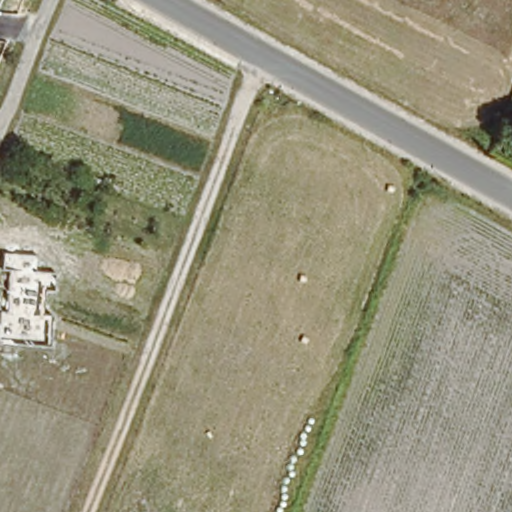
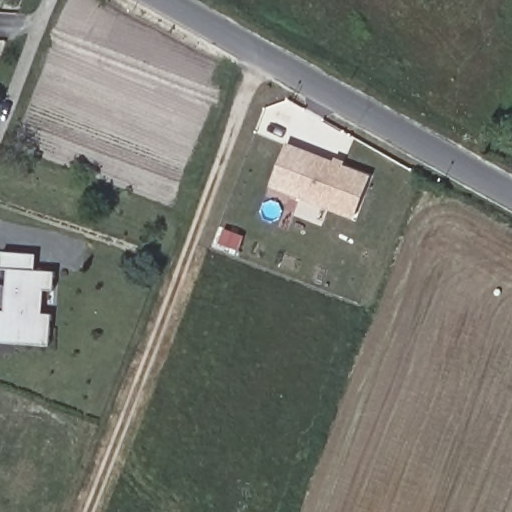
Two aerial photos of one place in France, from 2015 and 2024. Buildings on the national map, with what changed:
new [(270,185),(287,141),(372,175),(355,218),(270,185)]
new [(0,342),(0,310),(5,310),(9,269),(2,269),(4,251),(36,253),(35,271),(56,272),(55,289),(44,288),(44,314),(52,314),(50,345),(0,342)]

